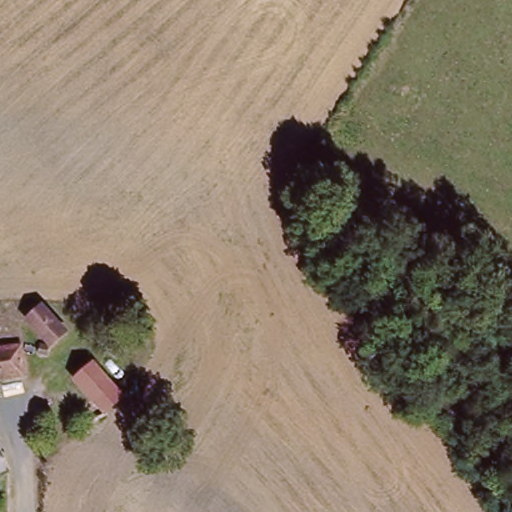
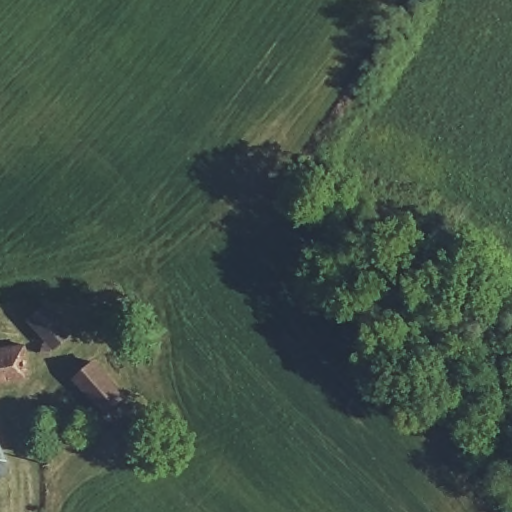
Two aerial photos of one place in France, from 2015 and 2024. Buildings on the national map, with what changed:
unchanged [(53,346),(28,319),(43,305),(68,332),(53,346)]
unchanged [(0,381),(0,349),(22,347),(26,379),(0,381)]
unchanged [(107,416),(77,380),(97,364),(127,398),(107,416)]
unchanged [(3,458),(0,460),(0,452),(3,458)]
unchanged [(0,474),(0,463),(4,472),(0,474)]

